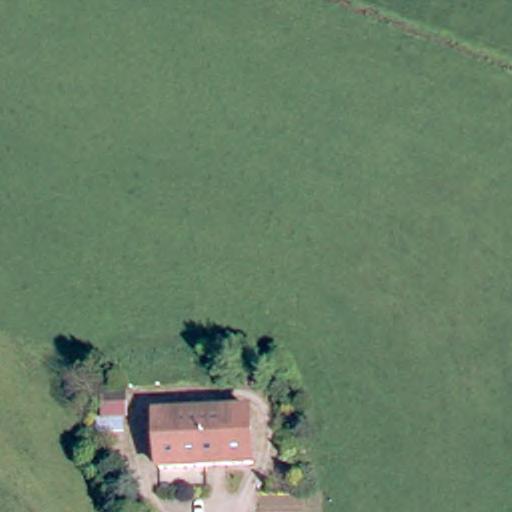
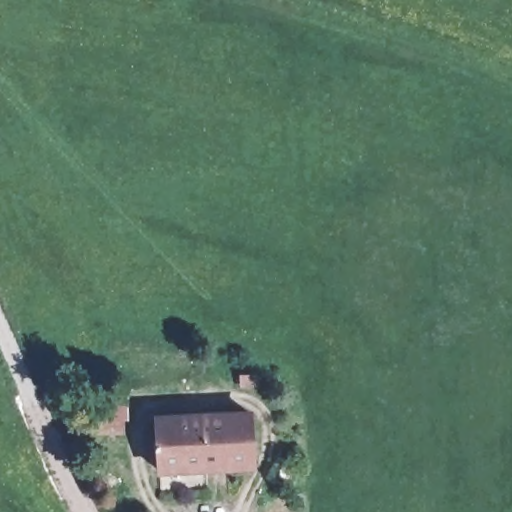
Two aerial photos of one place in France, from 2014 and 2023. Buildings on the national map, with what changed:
unchanged [(153,415),(241,413),(248,413),(251,471),(154,471),(153,415)]

